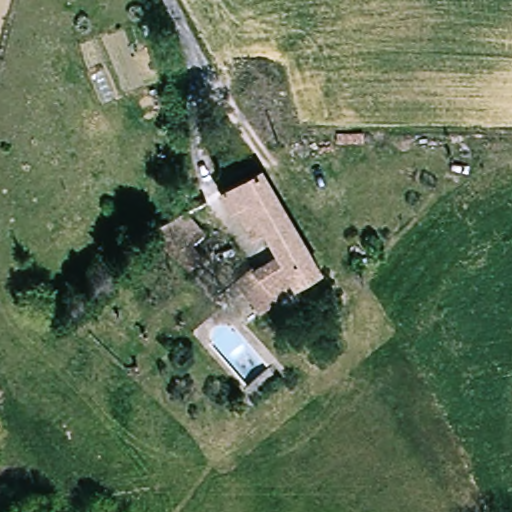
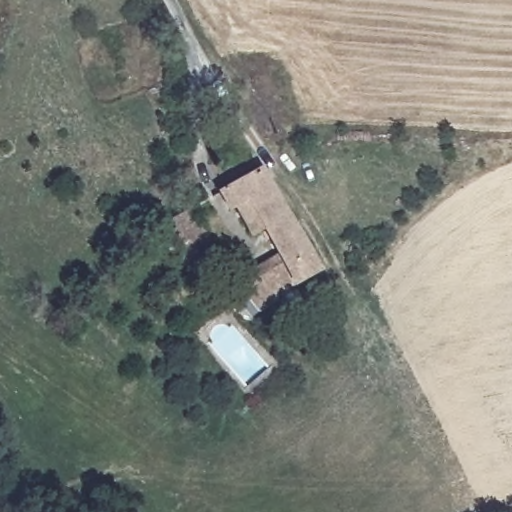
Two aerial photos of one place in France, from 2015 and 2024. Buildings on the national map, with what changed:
unchanged [(268,261),(271,267),(293,254),(273,221),(256,231),(237,198),(228,183),(268,160),(276,175),(329,262),(284,288),(287,293),(276,300),(259,310),(240,278),(256,268),(268,261)]
unchanged [(194,209),(209,230),(174,253),(156,227),(194,209)]

